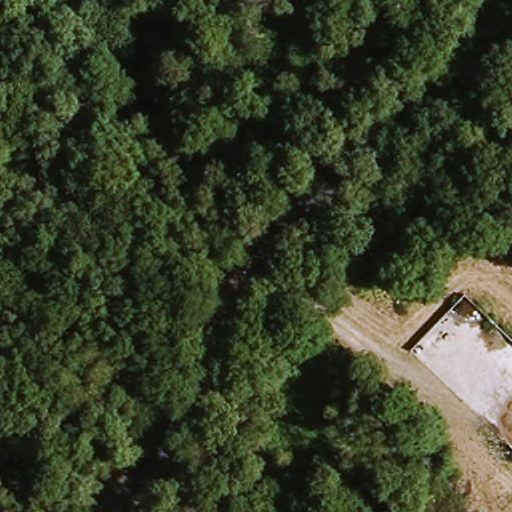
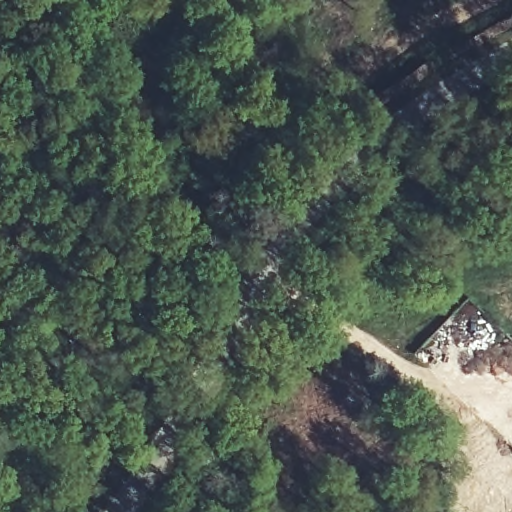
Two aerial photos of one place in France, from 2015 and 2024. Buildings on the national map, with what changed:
[]

